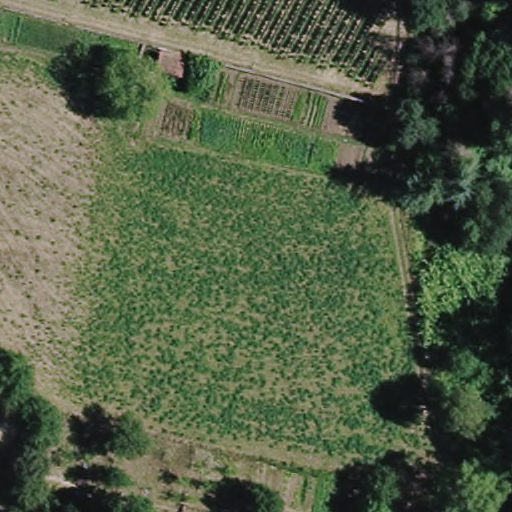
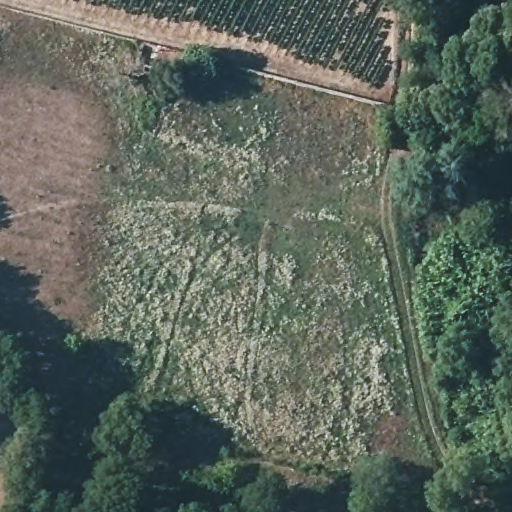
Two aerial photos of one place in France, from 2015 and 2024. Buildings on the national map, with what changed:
unchanged [(180,81),(151,75),(156,51),(184,58),(180,81)]
unchanged [(430,148),(418,149),(418,137),(429,137),(430,148)]

